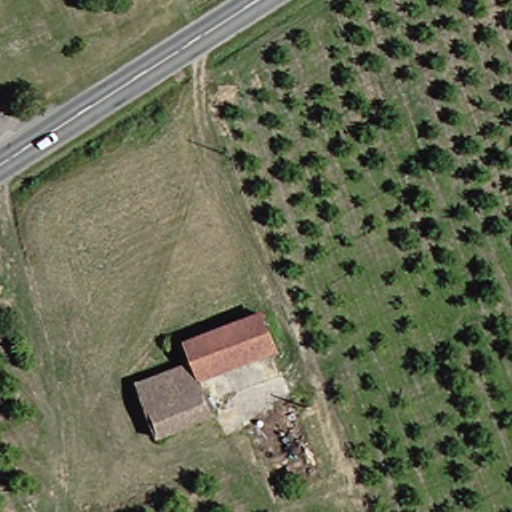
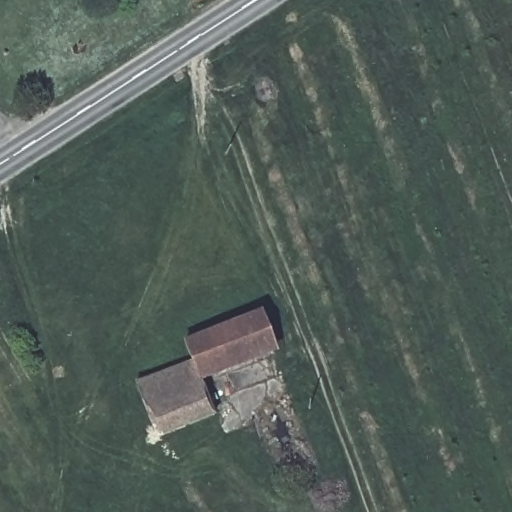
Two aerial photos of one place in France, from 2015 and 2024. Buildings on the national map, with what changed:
unchanged [(190,342),(267,311),(282,352),(205,381),(197,360),(190,342)]
unchanged [(205,381),(220,418),(164,442),(139,384),(197,360),(205,381)]

